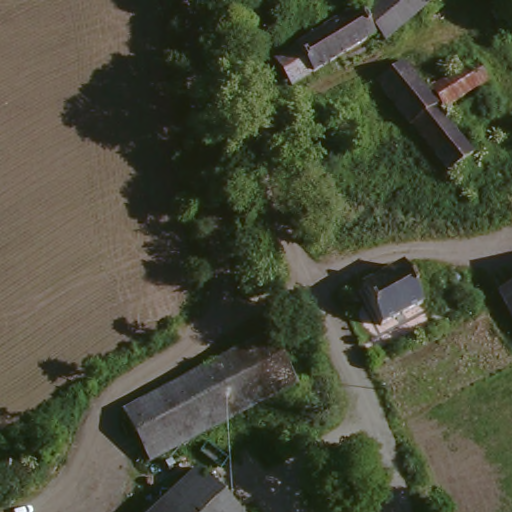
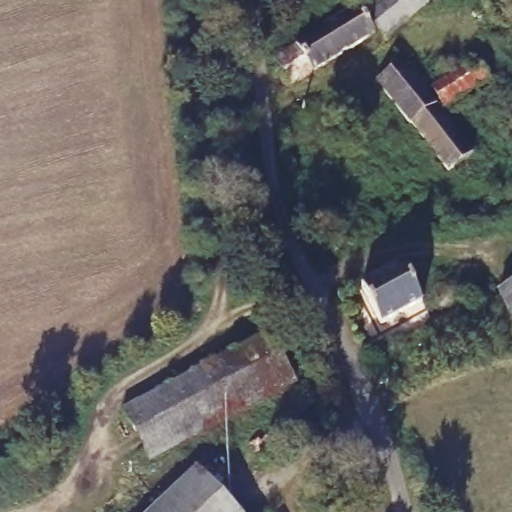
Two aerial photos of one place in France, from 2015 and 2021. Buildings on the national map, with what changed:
unchanged [(394,0),(437,0),(410,20),(379,44),(369,32),(360,20),(386,0),(394,0)]
unchanged [(304,45),(346,11),(364,36),(322,69),(304,45)]
unchanged [(304,45),(322,69),(288,96),(269,73),(304,45)]
unchanged [(482,60),(496,78),(451,111),(436,94),(482,60)]
unchanged [(404,70),(426,109),(428,111),(424,113),(446,148),(457,170),(452,174),(443,180),(387,80),(404,70)]
unchanged [(407,275),(419,307),(376,322),(363,290),(407,275)]
unchanged [(512,279),(512,328),(498,284),(512,279)]
unchanged [(269,337),(292,385),(146,465),(122,416),(269,337)]
unchanged [(194,473),(231,512),(153,512),(194,473)]

